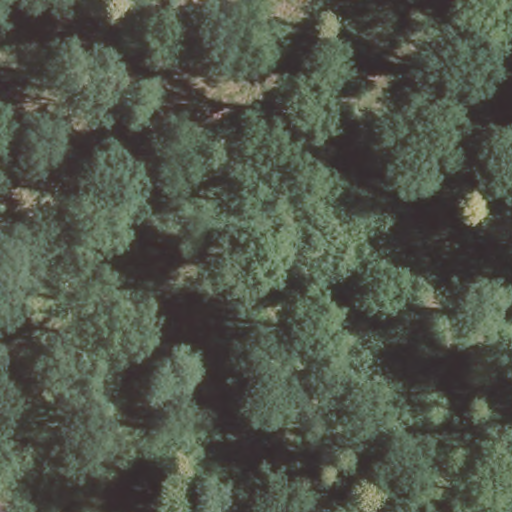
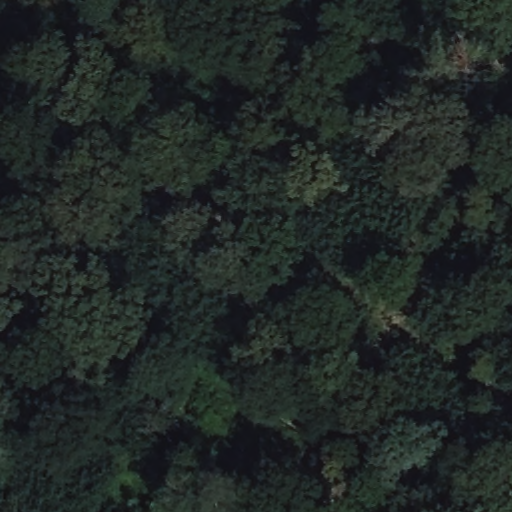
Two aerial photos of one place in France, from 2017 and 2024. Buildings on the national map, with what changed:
[]

